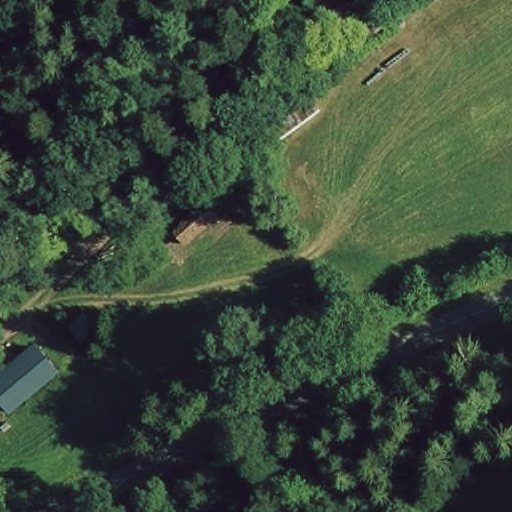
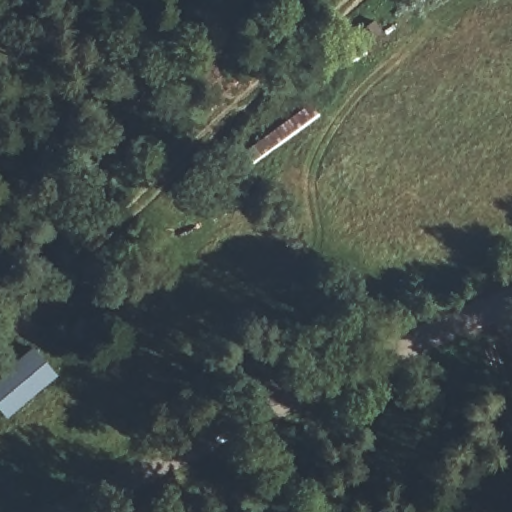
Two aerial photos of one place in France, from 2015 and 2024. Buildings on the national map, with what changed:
unchanged [(325,114),(259,164),(247,142),(307,98),(325,114)]
unchanged [(217,222),(175,256),(163,237),(198,198),(217,222)]
unchanged [(27,352),(52,384),(6,416),(0,410),(0,374),(27,352)]

